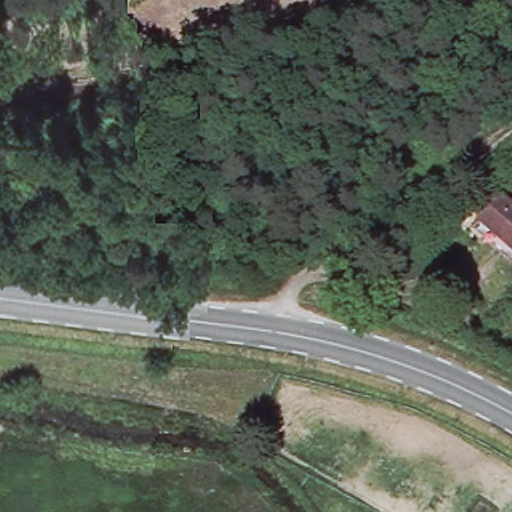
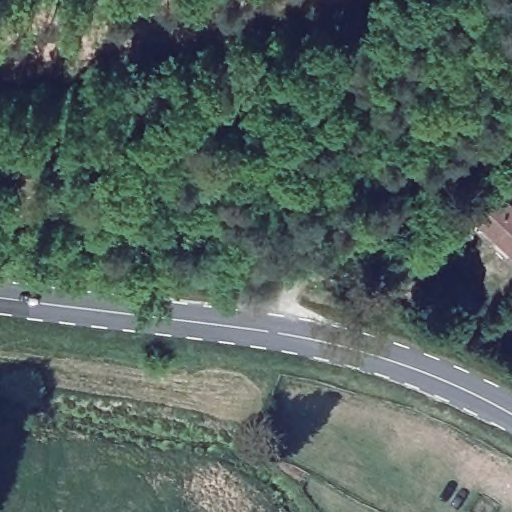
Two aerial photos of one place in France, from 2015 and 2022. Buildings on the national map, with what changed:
unchanged [(503,194),(512,202),(512,252),(478,222),(503,194)]

